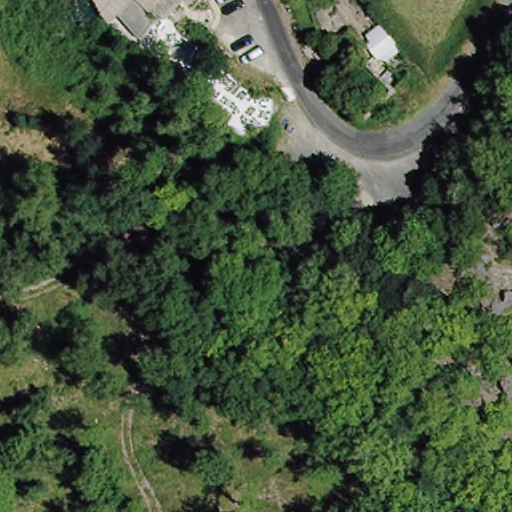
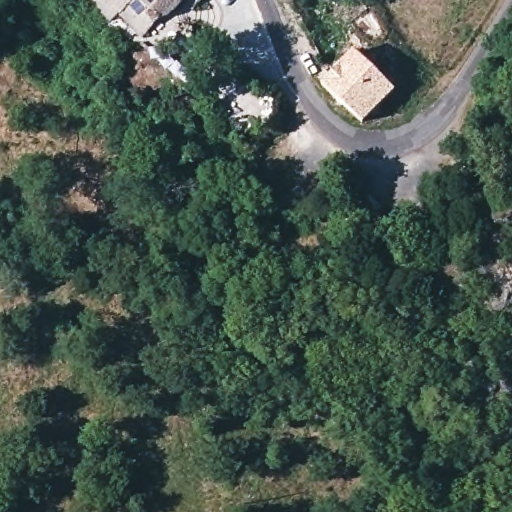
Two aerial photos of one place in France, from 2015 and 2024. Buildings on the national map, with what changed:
unchanged [(162,16),(157,22),(155,21),(142,36),(116,31),(94,2),(93,0),(181,0),(171,13),(162,16)]
new [(351,50),(395,92),(362,124),(319,82),(351,50)]

